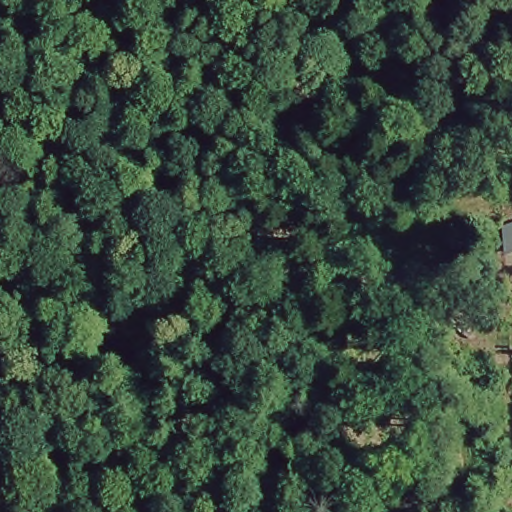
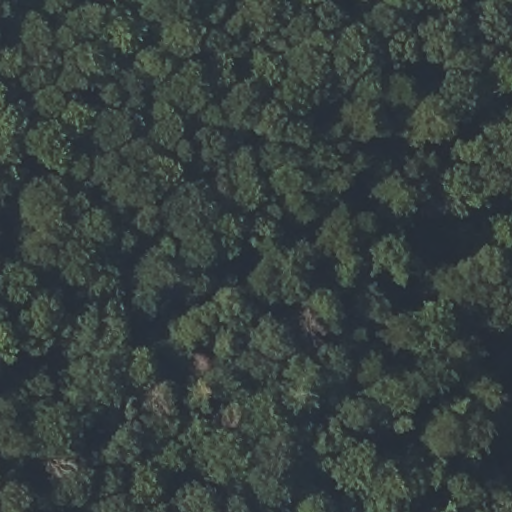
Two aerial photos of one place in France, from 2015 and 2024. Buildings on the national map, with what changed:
unchanged [(501,251),(494,221),(512,217),(512,248),(501,251)]

